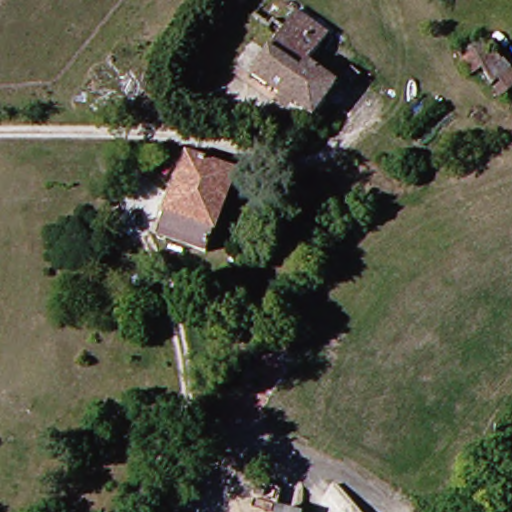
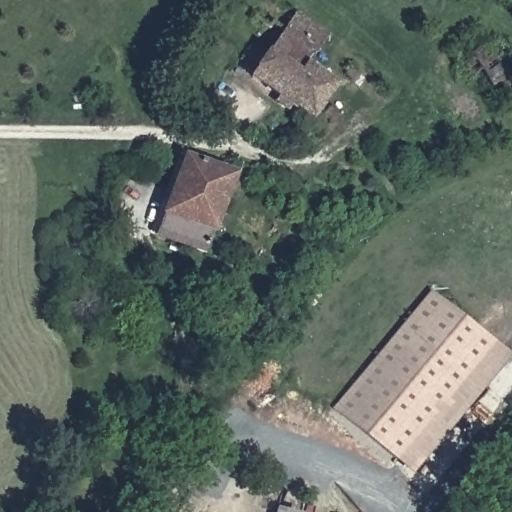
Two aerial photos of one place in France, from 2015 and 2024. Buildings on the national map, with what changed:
unchanged [(339,34),(319,62),(346,84),(320,119),(263,74),(310,12),(339,34)]
unchanged [(251,175),(220,252),(170,232),(201,156),(251,175)]
new [(431,290),(511,355),(413,474),(333,407),(431,290)]
unchanged [(311,512),(286,512),(286,507),(311,512)]

